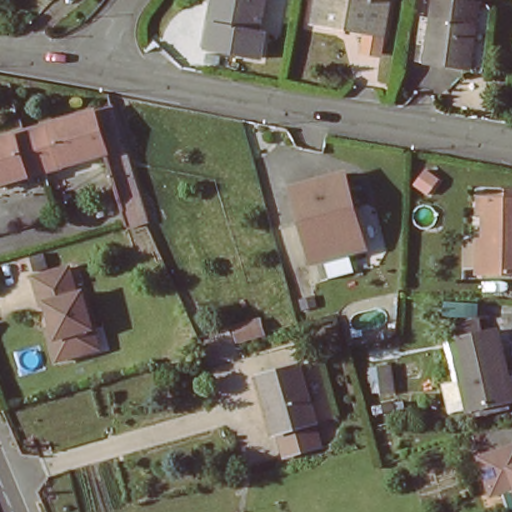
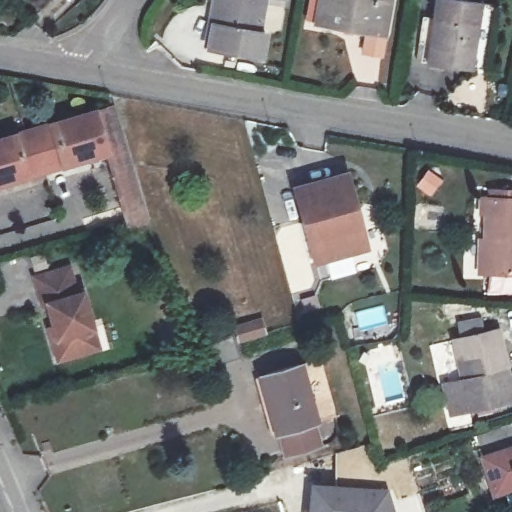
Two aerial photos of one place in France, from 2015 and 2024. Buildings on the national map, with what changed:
unchanged [(253,18),(263,20),(257,50),(205,40),(211,10),(206,9),(208,0),(257,0),(253,18)]
unchanged [(390,1),(383,38),(367,35),(367,41),(316,32),(322,0),(382,0),(390,1)]
unchanged [(490,7),(485,30),(478,29),(473,50),(482,52),(479,70),(425,60),(428,45),(418,43),(428,0),(453,0),(490,7)]
unchanged [(110,104),(141,205),(120,211),(102,152),(89,109),(110,104)]
unchanged [(0,180),(0,132),(89,109),(102,152),(0,180)]
unchanged [(347,177),(355,211),(348,215),(350,225),(361,230),(365,254),(314,265),(306,223),(302,225),(294,190),(347,177)]
unchanged [(482,273),(485,212),(480,212),(481,194),(512,196),(512,275),(482,273)]
unchanged [(51,368),(41,344),(57,338),(37,276),(75,265),(82,295),(88,294),(102,332),(96,335),(100,350),(51,368)]
unchanged [(255,340),(227,347),(223,333),(252,327),(255,340)]
unchanged [(444,385),(462,381),(452,338),(497,327),(512,391),(512,400),(468,410),(450,415),(444,385)]
unchanged [(318,420),(320,454),(285,466),(273,433),(255,374),(301,362),(318,420)]
unchanged [(495,495),(483,458),(512,448),(512,489),(495,495)]
new [(387,495),(393,512),(312,512),(314,490),(387,495)]

